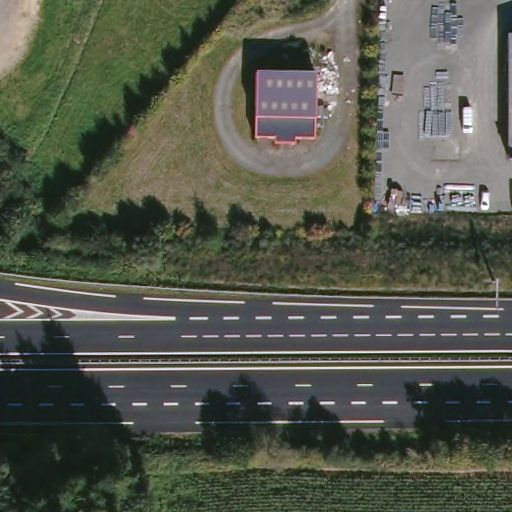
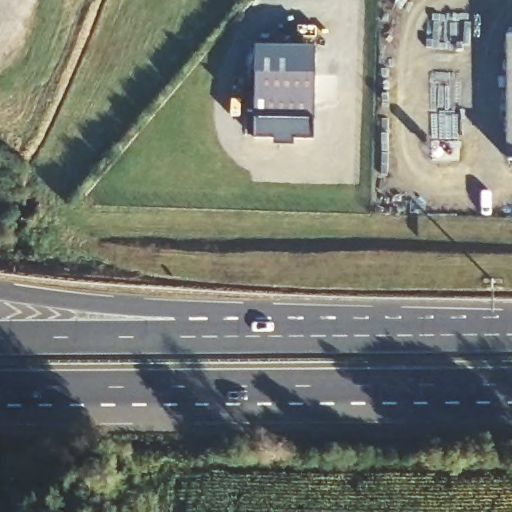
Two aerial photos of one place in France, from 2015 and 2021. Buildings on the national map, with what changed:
unchanged [(512,34),(512,159),(506,159),(506,34),(512,34)]
unchanged [(253,137),(252,71),(267,71),(271,64),(284,64),(291,72),(311,72),(310,137),(253,137)]

